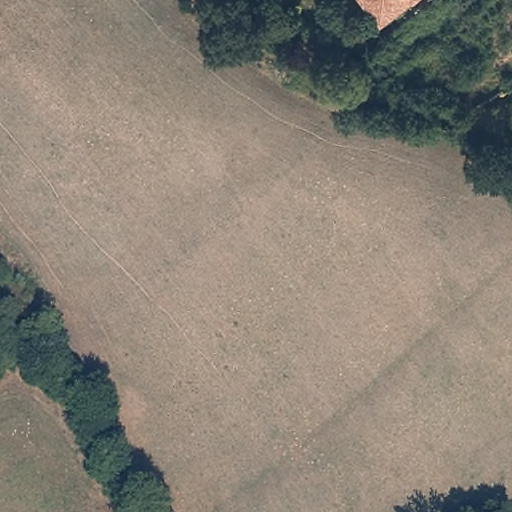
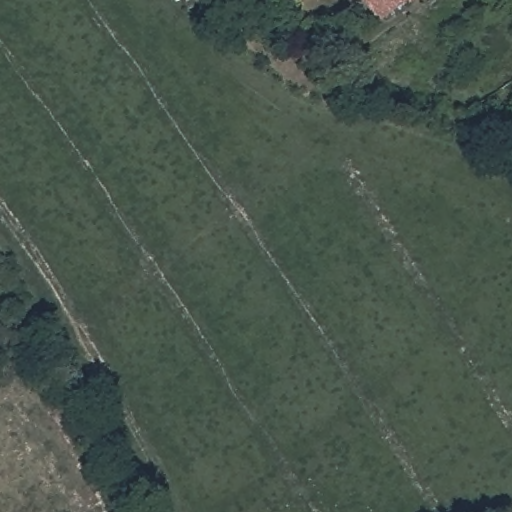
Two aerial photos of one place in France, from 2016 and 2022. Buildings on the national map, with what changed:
unchanged [(382,31),(357,0),(419,0),(382,31)]

